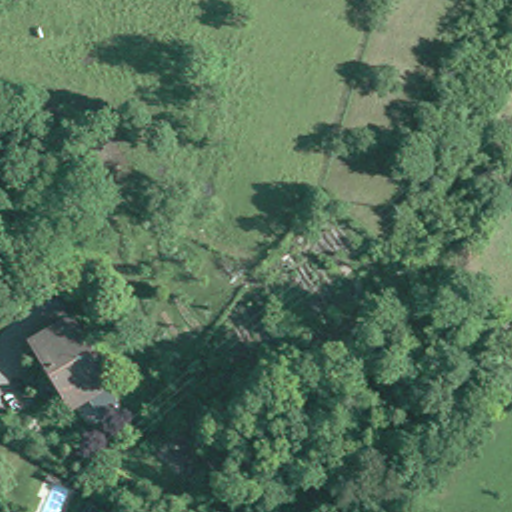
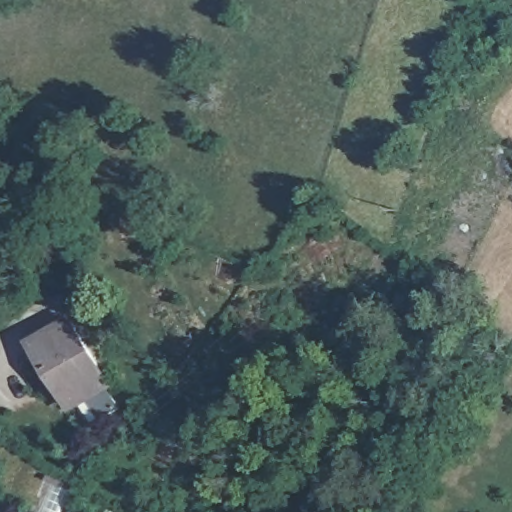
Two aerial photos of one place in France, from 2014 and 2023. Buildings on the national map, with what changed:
unchanged [(82,391),(67,401),(27,337),(63,314),(103,378),(100,380),(112,402),(96,413),(82,391)]

